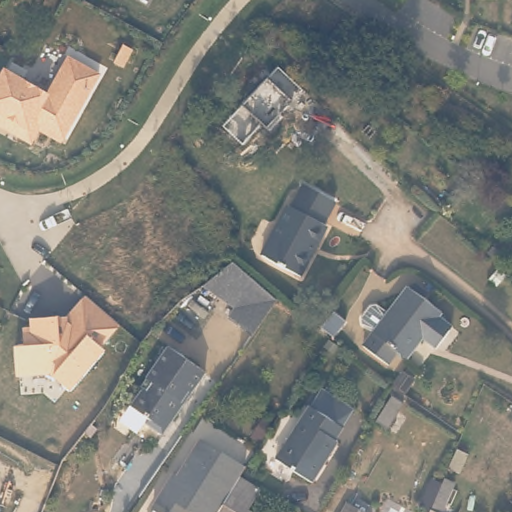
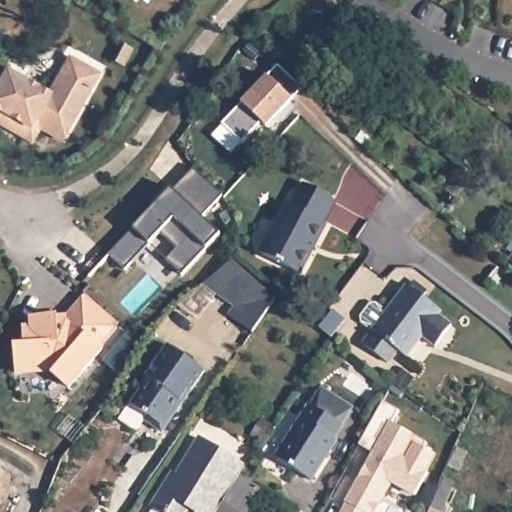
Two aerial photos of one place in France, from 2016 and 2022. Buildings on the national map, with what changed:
unchanged [(4,66),(48,91),(68,54),(101,70),(63,145),(41,132),(32,145),(0,128),(0,73),(4,66)]
unchanged [(303,90),(292,101),(270,129),(263,122),(244,143),(224,126),(242,104),(267,76),(279,66),(303,90)]
new [(135,229),(174,189),(195,168),(223,197),(203,219),(219,234),(207,249),(184,275),(167,260),(177,249),(161,233),(149,245),(126,270),(110,254),(135,229)]
unchanged [(333,199),(322,222),(325,224),(299,274),(262,255),(290,205),(293,206),(304,184),(333,199)]
unchanged [(512,247),(512,259),(506,255),(512,247)]
unchanged [(266,271),(290,294),(267,327),(242,308),(249,298),(220,277),(238,261),(244,255),(266,271)]
unchanged [(460,333),(444,354),(423,338),(406,359),(398,352),(389,365),(355,337),(354,331),(364,318),(370,318),(380,326),(408,288),(441,314),(440,317),(460,333)]
unchanged [(120,326),(70,392),(51,377),(15,377),(14,345),(23,345),(22,326),(30,326),(30,319),(67,316),(83,298),(120,326)]
unchanged [(344,322),(335,334),(321,324),(330,312),(344,322)]
unchanged [(205,369),(161,432),(144,420),(147,415),(129,402),(141,385),(138,383),(167,342),(205,369)]
unchanged [(413,382),(405,393),(395,384),(403,373),(413,382)]
unchanged [(320,391),(352,411),(341,428),(342,428),(334,442),(336,444),(310,483),(275,459),(308,407),(310,408),(320,391)]
demolished [(403,400),(387,428),(375,419),(390,391),(403,400)]
new [(344,505),(345,500),(372,451),(360,444),(383,404),(397,411),(392,423),(427,443),(425,448),(437,454),(415,496),(393,485),(377,512),(340,512),(344,505)]
unchanged [(271,421),(260,440),(249,433),(260,415),(271,421)]
unchanged [(185,510),(184,512),(145,512),(148,507),(145,506),(169,470),(173,473),(196,436),(242,465),(235,476),(212,512),(189,512),(185,510)]
unchanged [(455,479),(445,506),(455,512),(427,512),(429,508),(421,505),(433,478),(440,481),(442,474),(455,479)]
unchanged [(235,476),(254,489),(241,508),(245,510),(243,512),(212,512),(235,476)]
demolished [(344,505),(357,512),(340,512),(344,505)]

